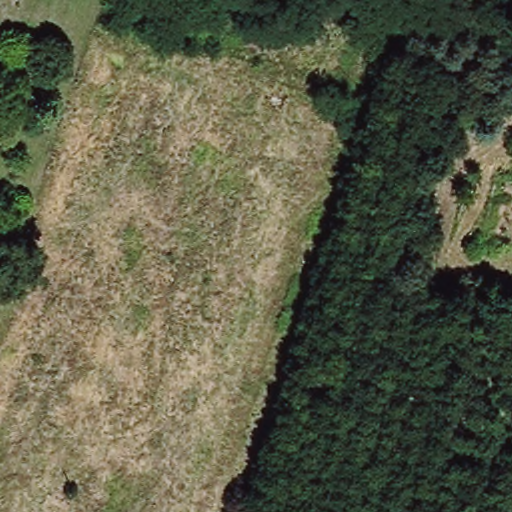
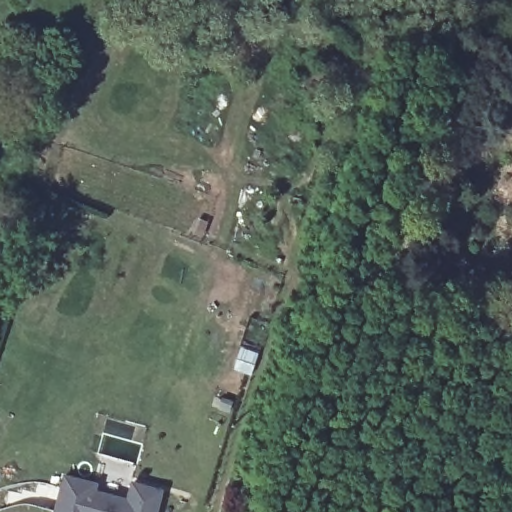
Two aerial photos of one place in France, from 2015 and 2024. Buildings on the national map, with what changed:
new [(95,486),(93,493),(127,501),(131,486),(161,494),(156,512),(54,512),(63,477),(95,486)]

